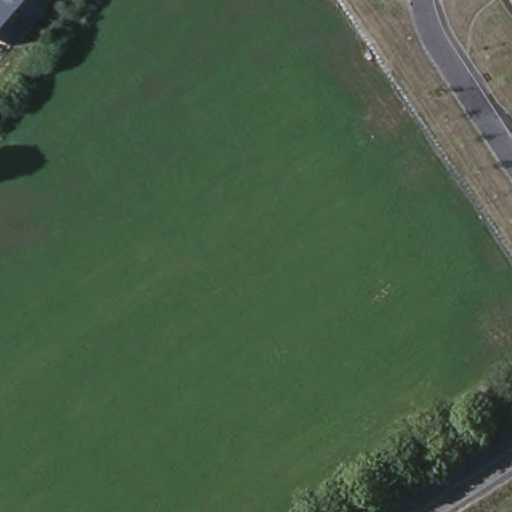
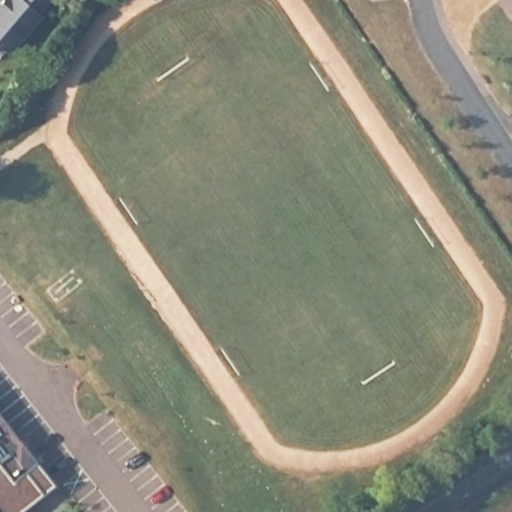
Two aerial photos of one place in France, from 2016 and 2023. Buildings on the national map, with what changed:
unchanged [(44,12),(9,51),(0,43),(0,0),(51,0),(41,11),(44,12)]
new [(11,512),(0,512),(0,404),(56,478),(11,512)]

